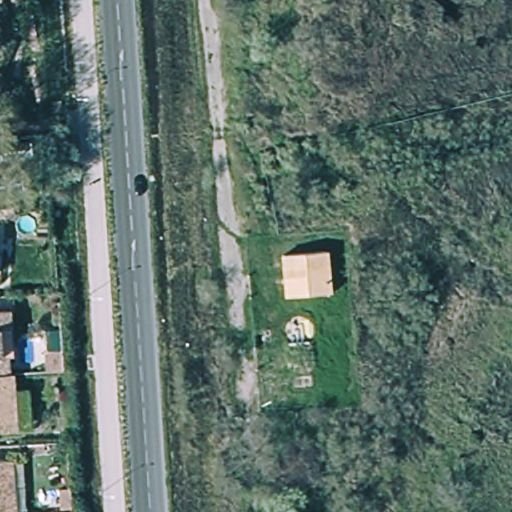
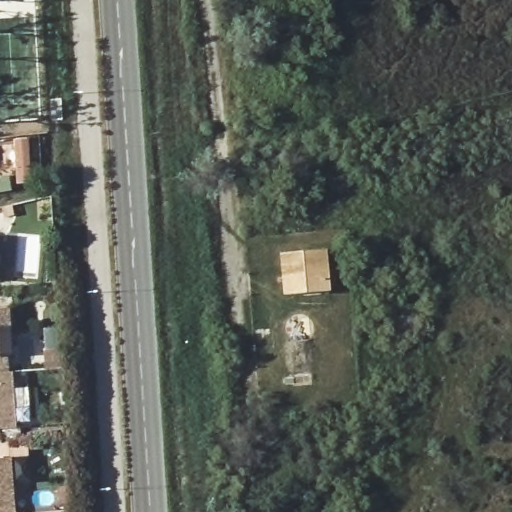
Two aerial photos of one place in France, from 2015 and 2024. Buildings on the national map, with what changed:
unchanged [(282,252),(324,247),(330,291),(287,297),(282,252)]
unchanged [(11,309),(12,332),(0,333),(0,310),(11,309)]
unchanged [(1,356),(9,355),(10,373),(0,373),(0,340),(1,356)]
unchanged [(10,373),(14,372),(15,388),(17,429),(0,430),(0,373),(10,373)]
unchanged [(14,458),(17,512),(0,512),(0,459),(14,458)]

